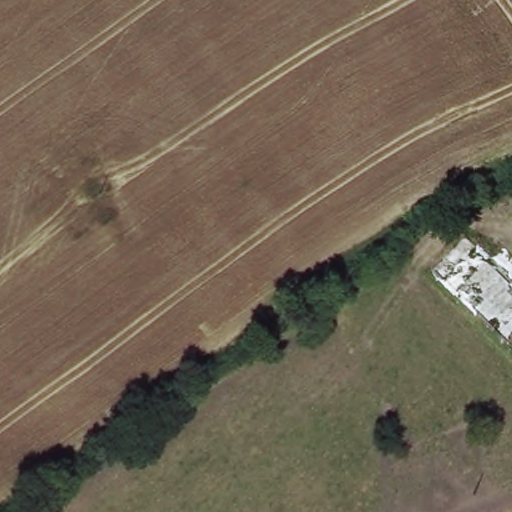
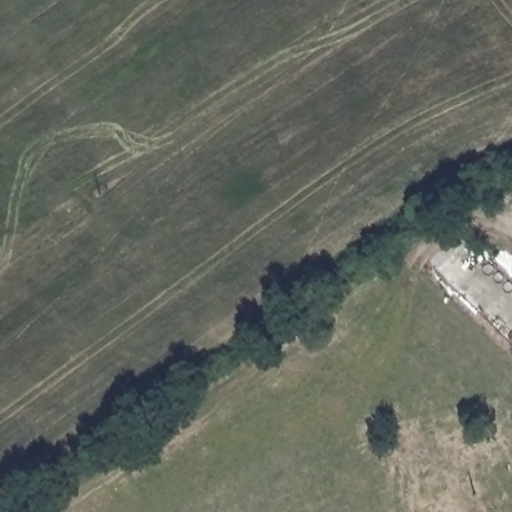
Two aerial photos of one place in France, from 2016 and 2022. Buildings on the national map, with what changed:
unchanged [(433,275),(467,242),(512,285),(512,349),(467,305),(433,275)]

